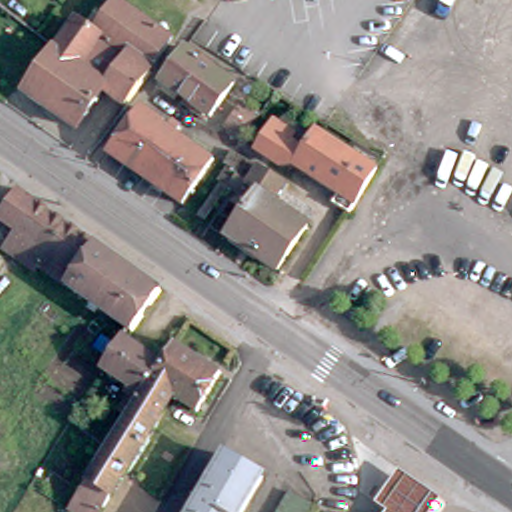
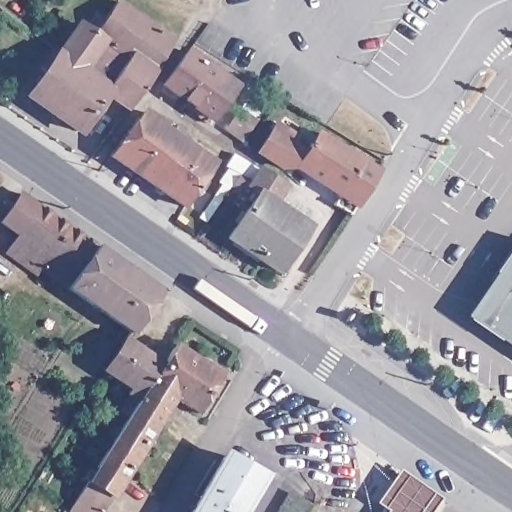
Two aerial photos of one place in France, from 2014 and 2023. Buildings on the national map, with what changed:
unchanged [(145,56),(140,62),(152,72),(128,104),(105,87),(77,128),(27,95),(79,22),(93,31),(116,0),(173,38),(155,63),(145,56)]
unchanged [(236,86),(212,118),(209,116),(205,122),(194,114),(198,108),(164,84),(188,51),(236,86)]
unchanged [(261,117),(247,136),(230,124),(245,105),(261,117)]
unchanged [(110,153),(140,114),(148,112),(163,123),(162,125),(169,130),(174,124),(182,130),(179,136),(215,161),(184,206),(170,196),(110,153)]
unchanged [(295,139),(302,130),(316,140),(319,137),(378,174),(369,189),(351,218),(333,207),(340,196),(299,170),(281,172),(258,157),(278,126),(295,139)]
unchanged [(285,275),(237,240),(261,205),(250,197),(260,183),(250,177),(224,213),(215,226),(209,222),(218,209),(234,186),(229,183),(237,169),(236,168),(243,156),(269,172),(292,186),(296,189),(292,193),(284,206),(317,230),(285,275)]
unchanged [(47,267),(42,274),(12,254),(21,241),(0,227),(24,192),(167,289),(165,290),(139,330),(134,326),(128,323),(47,267)]
new [(512,247),(512,350),(465,318),(512,247)]
unchanged [(129,335),(167,359),(170,361),(155,384),(150,382),(145,391),(145,392),(107,368),(129,335)]
unchanged [(155,384),(170,361),(167,359),(179,344),(225,374),(200,412),(174,395),(155,384)]
unchanged [(77,505),(97,471),(94,468),(135,402),(137,403),(145,392),(145,391),(150,382),(155,384),(174,395),(164,411),(101,512),(72,512),(77,505)]
unchanged [(222,458),(262,482),(243,512),(189,512),(222,458)]
unchanged [(391,507),(381,500),(402,470),(442,497),(432,512),(388,512),(391,507)]
unchanged [(315,507),(311,512),(280,512),(292,493),(315,507)]

